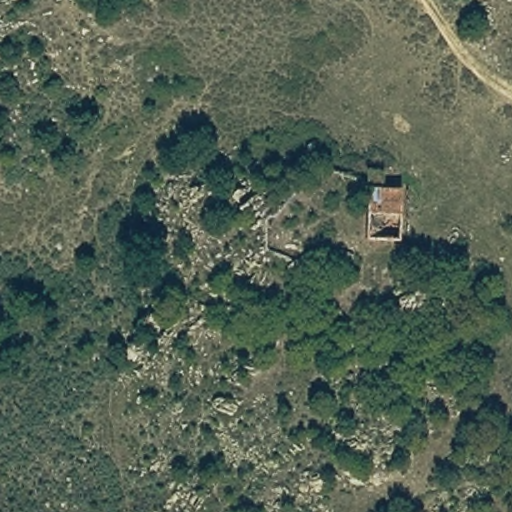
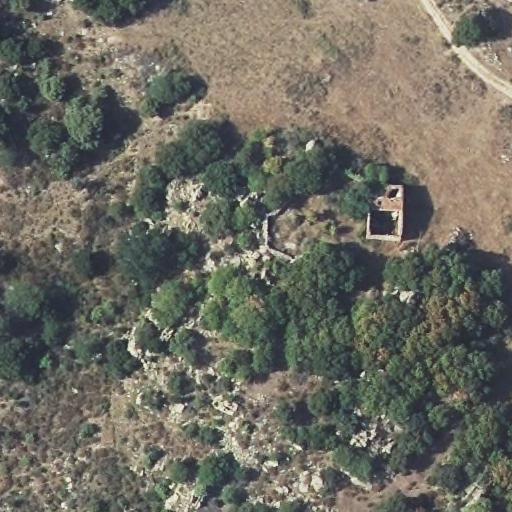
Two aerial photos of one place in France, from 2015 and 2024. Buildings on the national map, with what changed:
unchanged [(369,186),(405,186),(404,245),(366,242),(369,186)]

